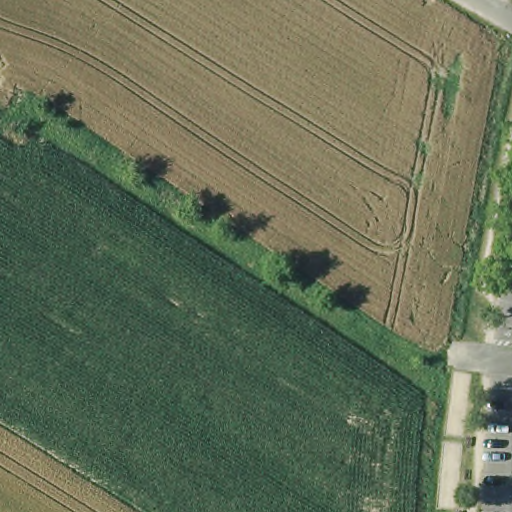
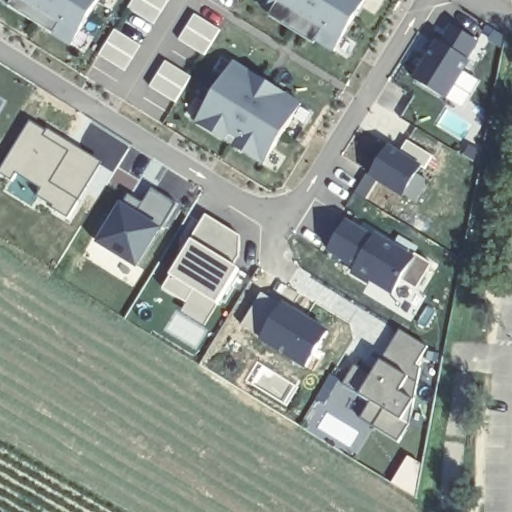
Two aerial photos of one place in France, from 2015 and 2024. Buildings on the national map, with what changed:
new [(0,0),(94,0),(67,43),(0,1),(0,0)]
new [(168,0),(153,26),(127,9),(133,0),(167,0),(168,0)]
new [(330,49),(263,7),(268,0),(361,0),(330,49)]
new [(219,32),(204,58),(178,41),(194,16),(219,32)]
new [(448,23),(474,39),(462,57),(437,41),(448,23)]
new [(139,47),(124,73),(98,56),(114,31),(139,47)]
new [(465,59),(442,97),(410,77),(434,39),(465,59)]
new [(230,60),(297,102),(259,162),(192,121),(230,60)]
new [(190,79),(175,105),(149,88),(165,63),(190,79)]
new [(45,128),(100,163),(66,220),(50,211),(52,207),(37,197),(40,191),(15,175),(10,181),(0,174),(0,169),(27,122),(43,131),(45,128)]
new [(420,166),(400,199),(366,179),(387,146),(420,166)]
new [(175,204),(134,271),(92,244),(117,203),(120,205),(127,195),(141,203),(150,190),(175,204)]
new [(238,236),(237,258),(230,268),(235,270),(214,306),(192,293),(185,303),(162,289),(168,280),(165,278),(204,215),(238,236)]
new [(325,248),(342,220),(370,237),(352,265),(325,248)]
new [(372,234),(409,256),(412,252),(429,262),(413,288),(397,278),(389,291),(367,278),(365,280),(349,270),(370,237),(372,234)]
new [(307,366),(242,326),(262,293),(327,332),(307,366)]
new [(339,383),(351,364),(368,374),(372,377),(381,362),(379,361),(399,330),(424,345),(412,364),(417,367),(405,423),(395,441),(369,425),(356,417),(367,400),(380,408),(339,383)]
new [(407,454),(423,463),(415,497),(389,483),(407,454)]

